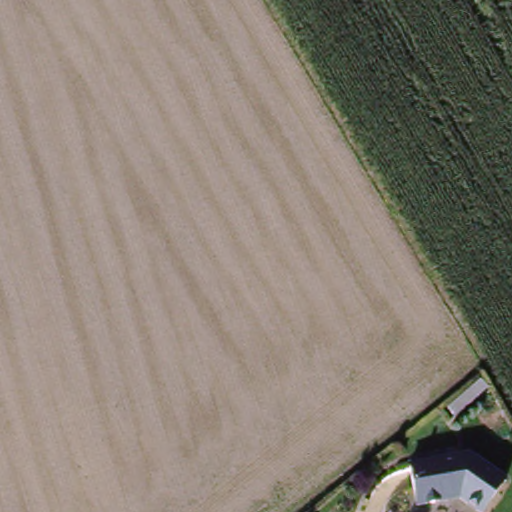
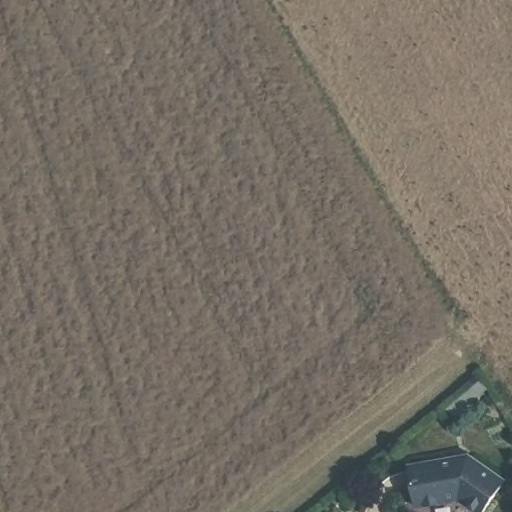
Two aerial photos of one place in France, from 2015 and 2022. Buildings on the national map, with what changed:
unchanged [(460,413),(453,405),(481,382),(487,389),(460,413)]
unchanged [(415,466),(475,457),(509,482),(487,512),(482,512),(465,500),(421,506),(415,466)]

